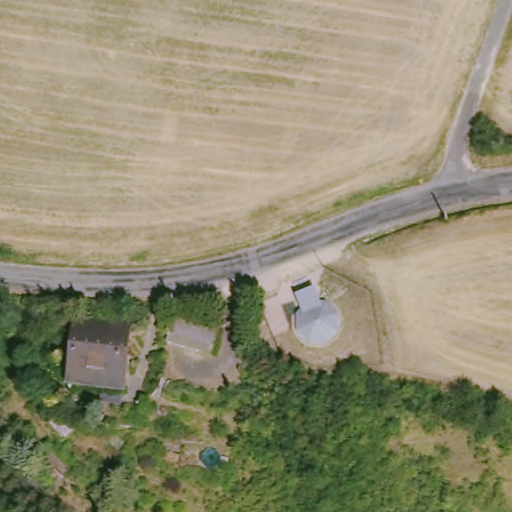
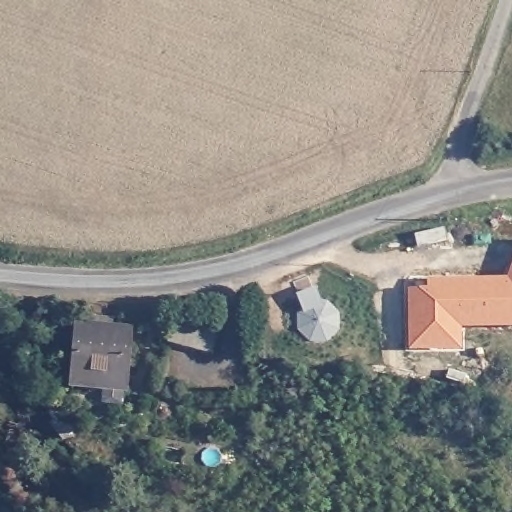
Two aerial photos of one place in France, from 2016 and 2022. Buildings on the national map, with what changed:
new [(427,288),(427,279),(507,278),(512,264),(512,327),(460,328),(460,350),(408,351),(408,289),(427,288)]
unchanged [(315,290),(297,298),(291,283),(309,275),(315,290)]
unchanged [(217,321),(212,349),(167,344),(170,315),(217,321)]
unchanged [(128,325),(122,374),(128,374),(126,392),(70,386),(79,319),(128,325)]

